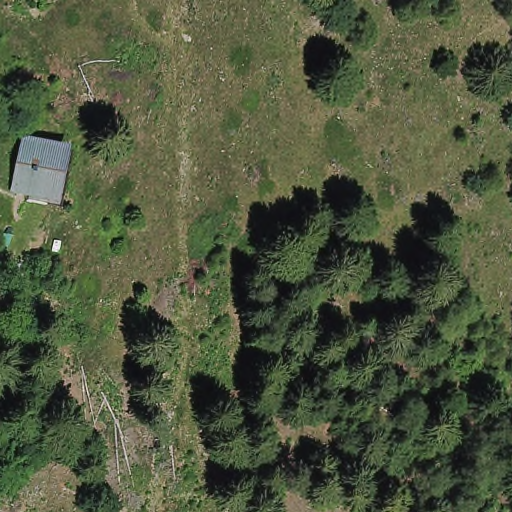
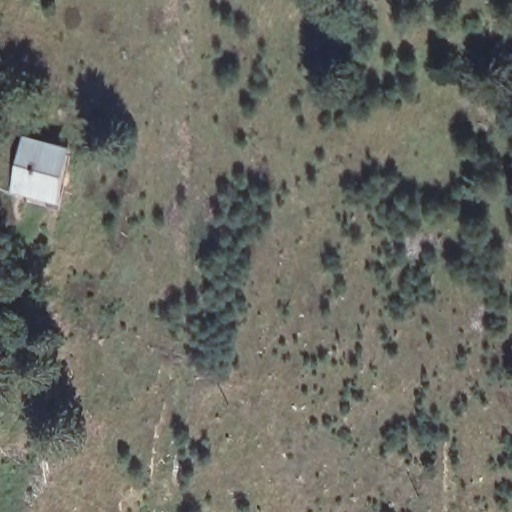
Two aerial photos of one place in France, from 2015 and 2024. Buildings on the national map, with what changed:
unchanged [(24,189),(34,142),(66,148),(57,195),(24,189)]

